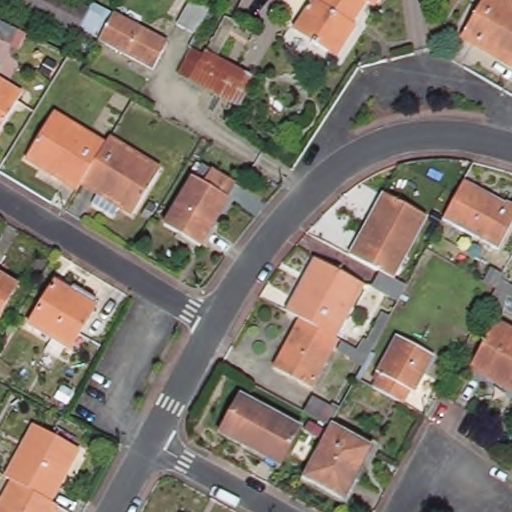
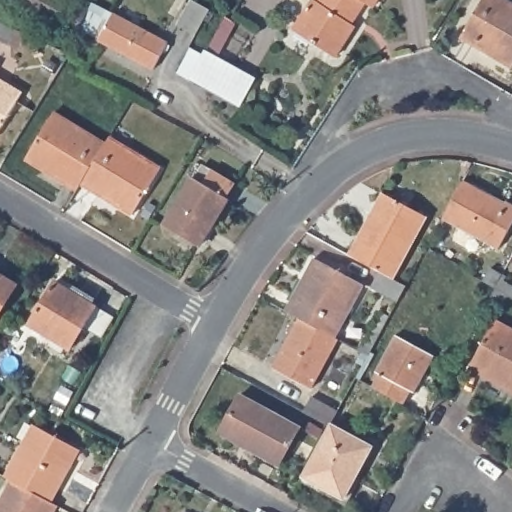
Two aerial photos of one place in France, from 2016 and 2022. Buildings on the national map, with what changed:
unchanged [(72,38),(14,8),(18,0),(65,0),(86,11),(72,38)]
unchanged [(366,5),(351,28),(355,30),(337,59),(293,33),(312,4),(315,6),(318,0),(380,0),(373,10),(366,5)]
unchanged [(512,66),(510,69),(462,40),(487,0),(491,0),(512,12),(512,66)]
unchanged [(211,12),(211,13),(197,37),(197,38),(179,28),(193,2),(211,12)]
unchanged [(165,46),(150,73),(95,44),(109,17),(109,16),(165,46)]
unchanged [(241,107),(192,80),(182,74),(195,50),(205,56),(254,83),(241,107)]
unchanged [(17,98),(0,127),(0,87),(17,98)]
unchanged [(107,143),(82,182),(79,188),(28,157),(56,112),(107,143)]
unchanged [(110,139),(161,169),(134,213),(121,206),(115,216),(94,203),(101,193),(82,182),(107,143),(110,139)]
unchanged [(213,171),(236,186),(227,200),(229,201),(199,247),(165,225),(194,179),(204,185),(213,171)]
unchanged [(502,199),(512,204),(512,218),(495,249),(438,218),(460,178),(501,201),(502,199)]
unchanged [(382,275),(357,261),(351,257),(359,243),(363,245),(378,218),(374,216),(385,197),(427,221),(394,282),(406,288),(407,289),(398,306),(373,291),(382,275)]
unchanged [(365,290),(336,341),(302,322),(286,313),(315,262),(365,290)]
unchanged [(16,286),(0,314),(0,276),(16,286)]
unchanged [(95,310),(70,353),(27,328),(53,285),(95,310)]
unchanged [(336,341),(338,342),(312,390),(276,370),(302,322),(336,341)]
unchanged [(512,385),(472,366),(493,322),(512,332),(512,385)]
unchanged [(435,357),(415,393),(412,392),(405,406),(375,389),(382,376),(378,373),(398,337),(435,357)]
unchanged [(252,457),(217,437),(238,399),(297,432),(277,466),(275,470),(252,457)]
unchanged [(360,478),(357,477),(346,499),(306,476),(331,430),(306,416),(315,399),(341,413),(333,425),(377,449),(360,478)]
unchanged [(81,452),(52,505),(16,485),(9,481),(37,428),(81,452)]
unchanged [(52,505),(59,509),(57,512),(1,512),(16,485),(52,505)]

